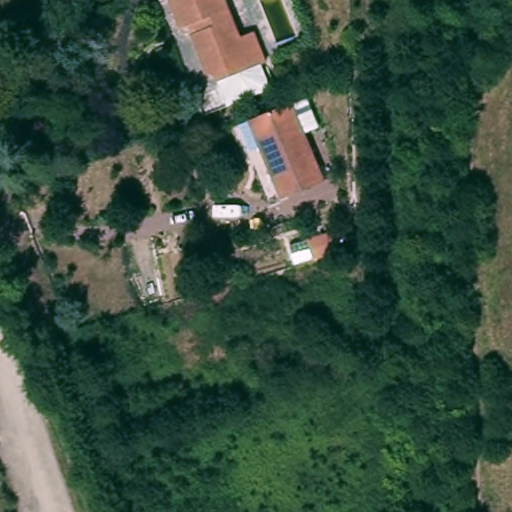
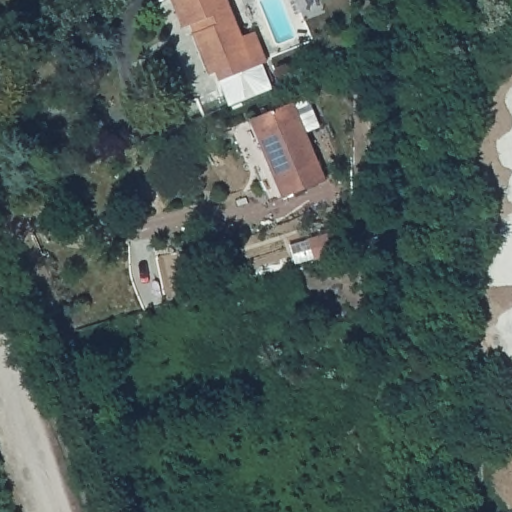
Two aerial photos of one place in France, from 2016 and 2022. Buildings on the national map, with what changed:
unchanged [(238,37),(252,32),(264,62),(258,65),(268,90),(227,106),(213,72),(207,76),(190,34),(197,32),(194,22),(180,28),(169,0),(223,0),(238,37)]
unchanged [(279,199),(246,120),(290,102),(323,181),(279,199)]

